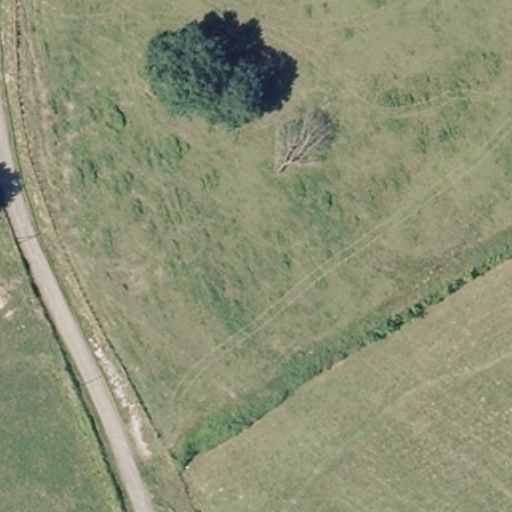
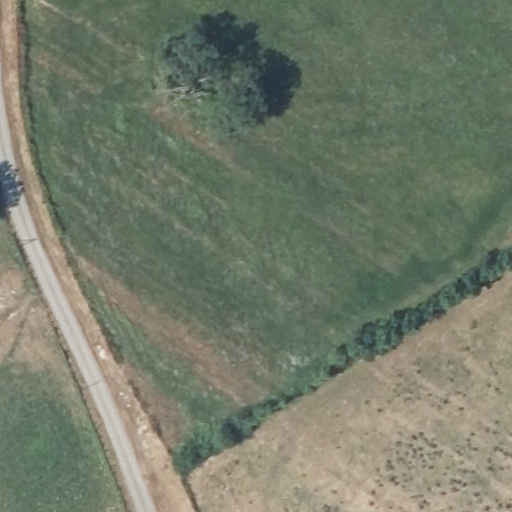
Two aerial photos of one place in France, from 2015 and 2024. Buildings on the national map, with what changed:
[]

